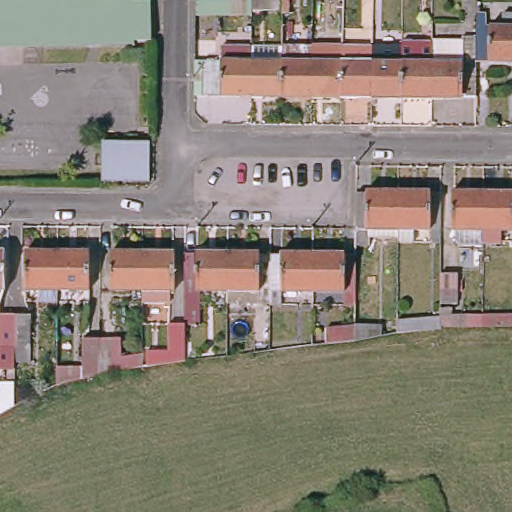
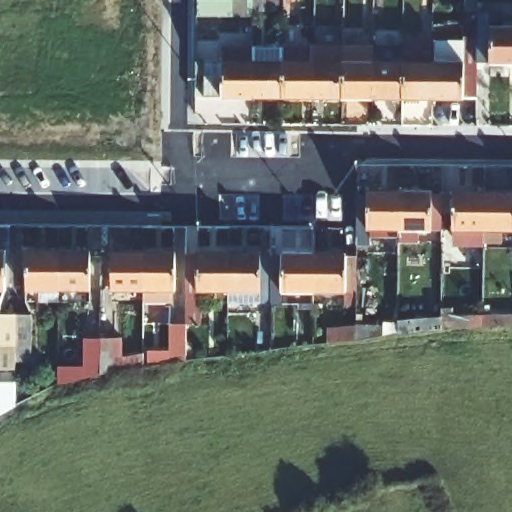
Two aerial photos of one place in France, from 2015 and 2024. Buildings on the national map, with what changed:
demolished [(0,42),(0,0),(149,0),(150,39),(0,42)]
unchanged [(483,61),(484,58),(471,57),(471,45),(471,11),(480,11),(480,24),(512,24),(512,61),(483,61)]
unchanged [(278,45),(278,41),(308,41),(308,59),(308,95),(276,95),(278,45)]
unchanged [(247,47),(247,44),(278,45),(276,95),(247,95),(247,47)]
unchanged [(337,95),(338,60),(338,44),(368,44),(367,96),(337,95)]
unchanged [(367,96),(368,44),(398,44),(397,96),(367,96)]
unchanged [(397,96),(398,44),(428,44),(427,96),(397,96)]
unchanged [(470,94),(450,94),(450,96),(427,96),(428,44),(471,45),(471,57),(470,94)]
unchanged [(213,95),(213,93),(198,93),(191,93),(191,58),(198,58),(215,59),(216,46),(247,47),(247,95),(213,95)]
unchanged [(308,59),(338,60),(337,95),(308,95),(308,59)]
demolished [(160,136),(159,176),(112,176),(112,135),(160,136)]
unchanged [(358,184),(368,185),(369,182),(399,182),(399,220),(399,227),(369,227),(369,236),(358,236),(358,223),(358,219),(358,184)]
unchanged [(399,220),(399,182),(432,183),(432,185),(443,186),(443,219),(439,219),(432,219),(416,219),(416,229),(399,229),(399,227),(399,220)]
unchanged [(439,221),(447,221),(448,184),(479,184),(478,232),(478,235),(455,235),(451,232),(439,232),(439,221)]
unchanged [(509,185),(509,187),(512,187),(512,231),(509,231),(509,222),(498,222),(498,232),(478,232),(479,184),(509,185)]
unchanged [(131,283),(103,283),(103,244),(131,245),(131,283)]
unchanged [(165,245),(165,284),(156,283),(155,294),(132,293),(131,283),(131,245),(165,245)]
unchanged [(186,248),(187,245),(217,245),(217,284),(186,283),(186,294),(174,294),(174,247),(186,248)]
unchanged [(248,246),(248,248),(261,248),(261,284),(261,294),(217,295),(217,284),(217,245),(248,246)]
unchanged [(271,248),(271,245),(303,245),(303,284),(261,284),(261,248),(271,248)]
unchanged [(334,246),(334,249),(346,249),(346,279),(346,285),(303,284),(303,245),(334,246)]
unchanged [(55,278),(55,287),(28,287),(28,248),(55,249),(55,278)]
unchanged [(89,249),(89,288),(55,287),(55,278),(55,249),(89,249)]
unchanged [(441,270),(459,271),(459,301),(441,301),(441,270)]
unchanged [(0,304),(10,305),(25,305),(24,352),(10,352),(10,362),(0,361),(0,304)]
unchanged [(441,318),(441,313),(453,313),(454,318),(483,316),(512,314),(512,328),(483,329),(441,331),(398,334),(398,332),(397,320),(441,318)]
unchanged [(255,347),(256,317),(271,317),(271,347),(255,347)]
unchanged [(168,322),(184,322),(184,359),(181,360),(168,361),(168,322)]
unchanged [(355,323),(355,325),(381,325),(383,335),(355,339),(324,342),(323,326),(355,323)]
unchanged [(56,375),(56,363),(81,357),(81,334),(97,335),(97,356),(97,368),(97,371),(58,380),(56,380),(56,375)]
unchanged [(97,368),(97,356),(97,335),(118,335),(118,354),(142,349),(142,360),(142,362),(138,363),(97,371),(97,368)]
unchanged [(15,402),(0,410),(0,379),(15,380),(15,402)]

